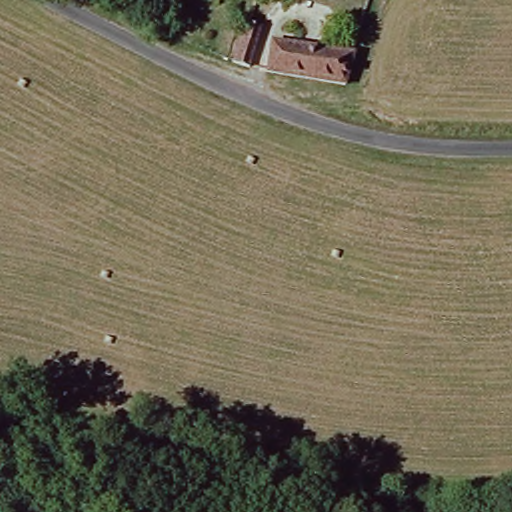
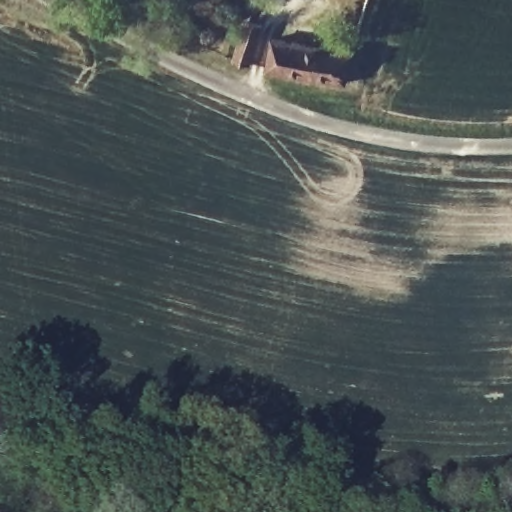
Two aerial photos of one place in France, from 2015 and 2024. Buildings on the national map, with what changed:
unchanged [(247,62),(230,54),(245,15),(261,21),(247,62)]
unchanged [(342,92),(266,75),(270,44),(351,58),(342,92)]

